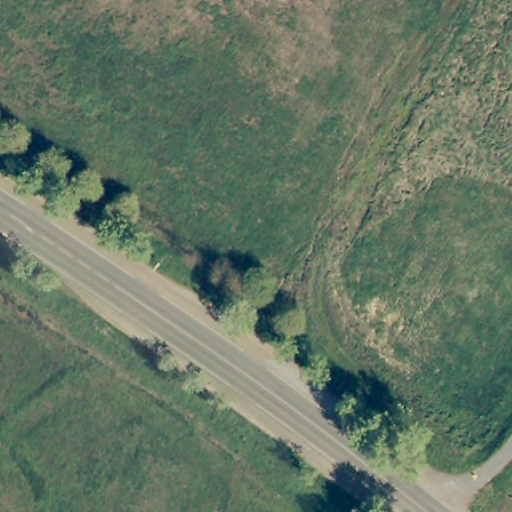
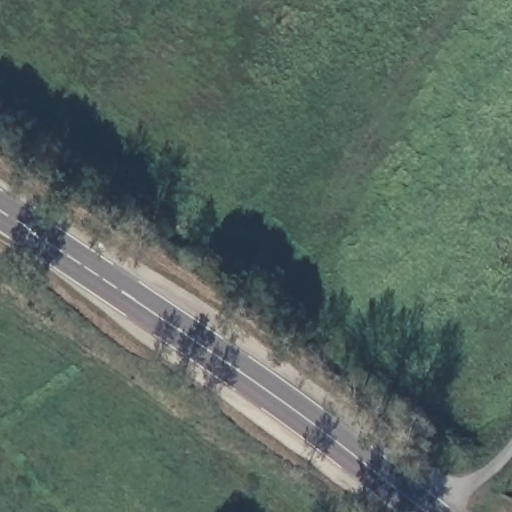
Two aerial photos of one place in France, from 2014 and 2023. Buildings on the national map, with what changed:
[]

